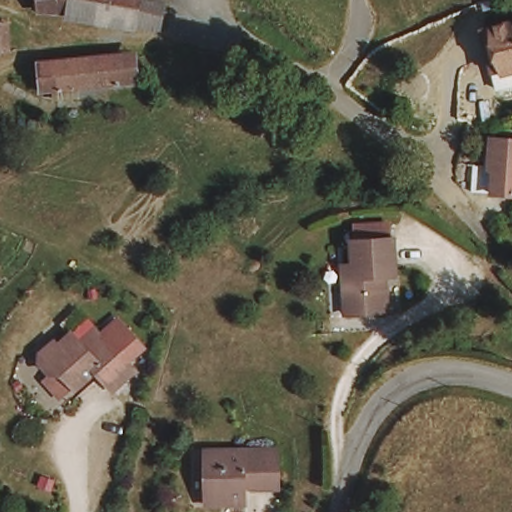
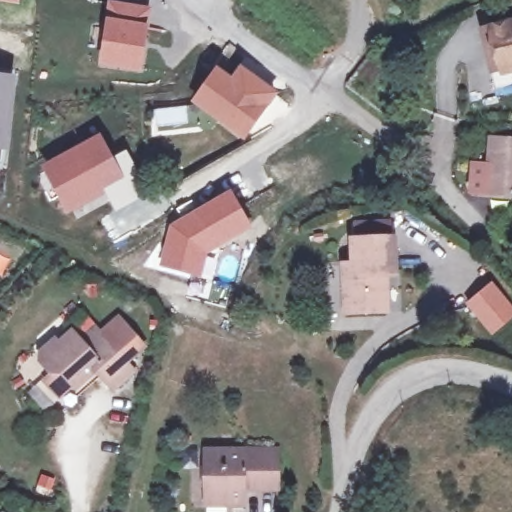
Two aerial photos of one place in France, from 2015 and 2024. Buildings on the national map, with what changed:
new [(19,5),(0,1),(0,0),(20,0),(19,5)]
demolished [(127,22),(34,12),(34,0),(132,0),(127,22)]
new [(107,0),(110,0),(151,6),(143,73),(98,67),(107,0)]
unchanged [(497,22),(512,20),(512,63),(502,64),(497,22)]
demolished [(126,81),(44,88),(41,58),(97,53),(98,55),(124,56),(126,81)]
new [(217,65),(231,76),(240,64),(278,93),(243,141),(190,102),(217,65)]
new [(17,75),(9,151),(5,151),(3,165),(0,165),(0,73),(17,75)]
unchanged [(487,165),(490,136),(512,138),(512,189),(493,187),(477,186),(479,164),(487,165)]
new [(98,143),(109,161),(122,154),(145,192),(120,207),(108,187),(70,209),(48,171),(98,143)]
new [(169,224),(230,189),(253,228),(209,254),(202,278),(158,267),(169,224)]
unchanged [(395,243),(396,278),(388,280),(390,316),(341,318),(340,288),(338,267),(347,267),(346,242),(395,243)]
new [(512,306),(512,320),(493,336),(466,304),(493,283),(512,306)]
unchanged [(60,381),(56,380),(46,370),(47,363),(61,350),(65,353),(78,342),(87,351),(101,335),(120,317),(149,347),(129,365),(108,343),(141,378),(121,397),(103,378),(82,396),(80,393),(67,405),(53,389),(60,381)]
unchanged [(274,448),(275,485),(243,483),(243,500),(225,501),(225,491),(205,491),(204,447),(274,448)]

